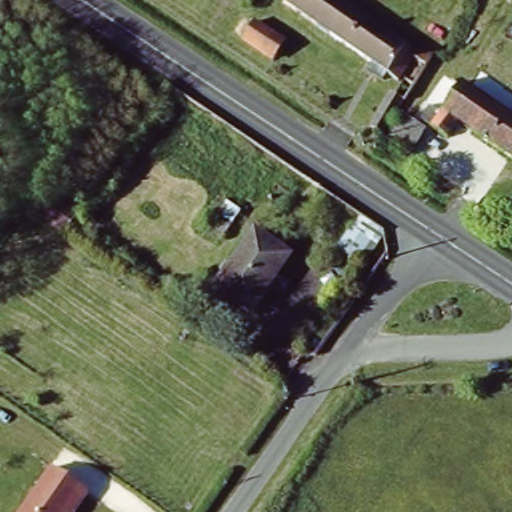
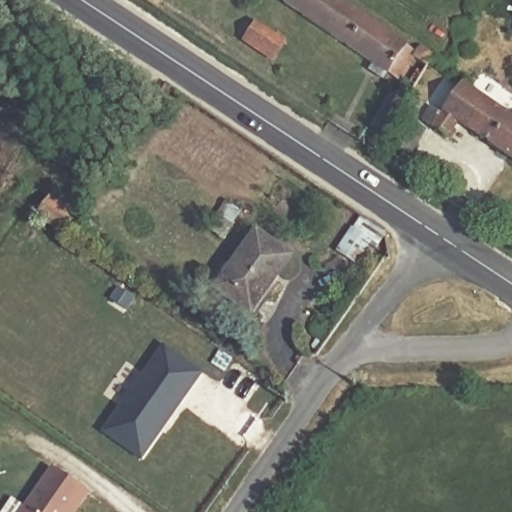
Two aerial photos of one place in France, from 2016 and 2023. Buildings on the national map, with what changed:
unchanged [(408,104),(405,101),(384,133),(370,124),(390,92),(392,94),(401,81),(284,5),(287,0),(339,0),(415,47),(417,43),(436,55),(432,62),(418,86),(408,104)]
unchanged [(241,37),(253,20),(282,39),(270,57),(241,37)]
unchanged [(445,138),(415,120),(424,106),(436,113),(455,80),(512,119),(512,159),(453,124),(445,138)]
unchanged [(77,212),(66,229),(37,210),(49,194),(77,212)]
unchanged [(223,199),(238,209),(222,233),(207,224),(223,199)]
unchanged [(361,215),(379,227),(357,259),(339,247),(361,215)]
unchanged [(249,231),(284,254),(247,310),(212,286),(249,231)]
new [(143,461),(102,434),(164,345),(204,373),(143,461)]
unchanged [(90,491),(75,512),(17,512),(49,465),(90,491)]

